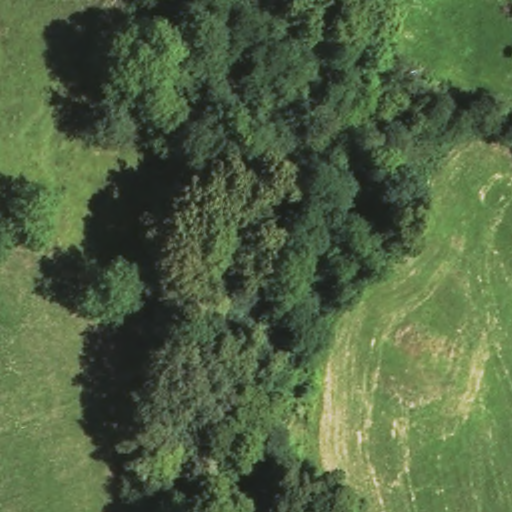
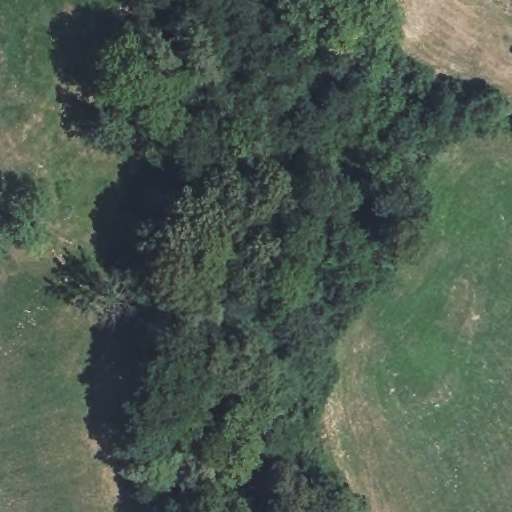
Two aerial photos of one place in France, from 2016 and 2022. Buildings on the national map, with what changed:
unchanged [(499,0),(512,0),(512,8),(499,0)]

